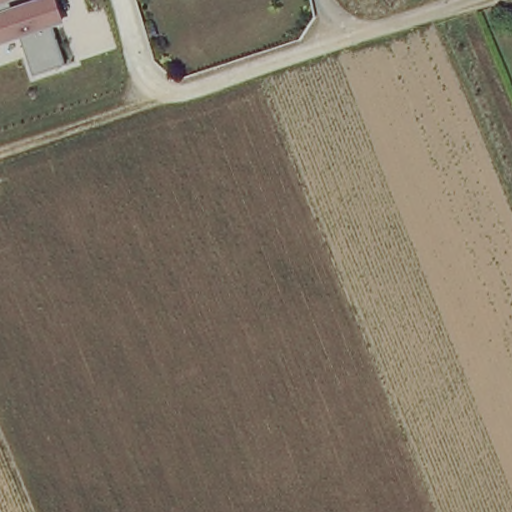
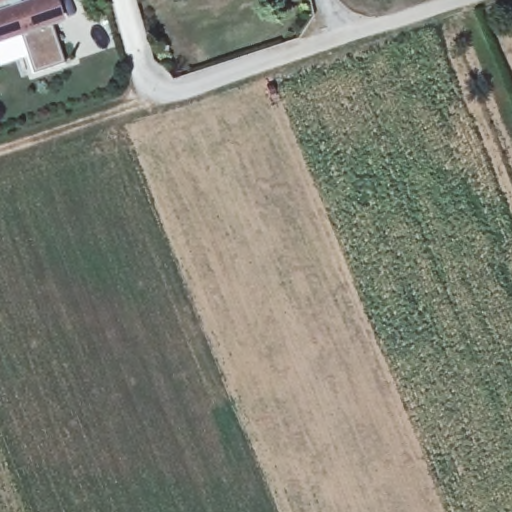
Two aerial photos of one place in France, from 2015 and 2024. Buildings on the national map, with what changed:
unchanged [(32,77),(18,37),(0,42),(0,0),(17,0),(20,7),(45,0),(52,0),(59,21),(50,26),(64,66),(32,77)]

